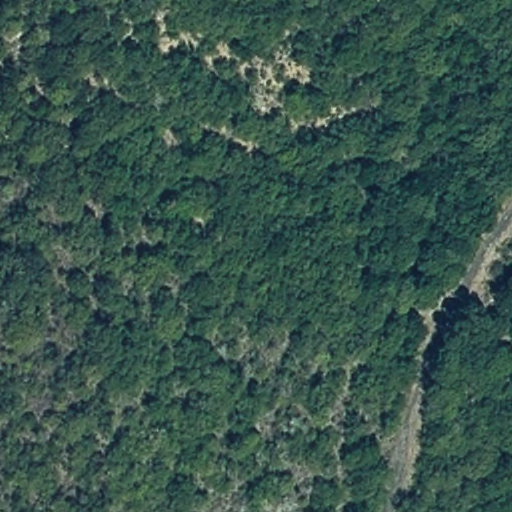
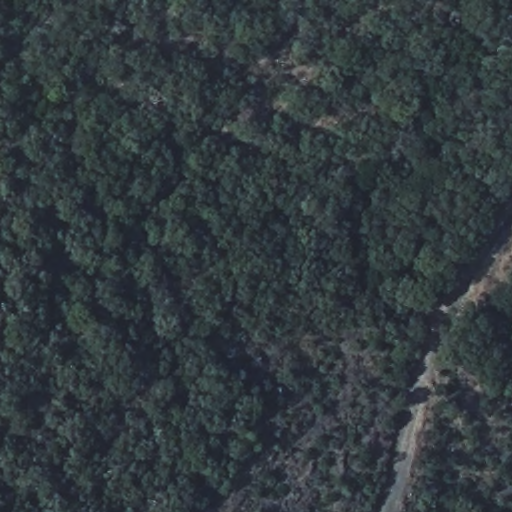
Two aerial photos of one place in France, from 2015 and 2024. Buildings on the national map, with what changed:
[]

